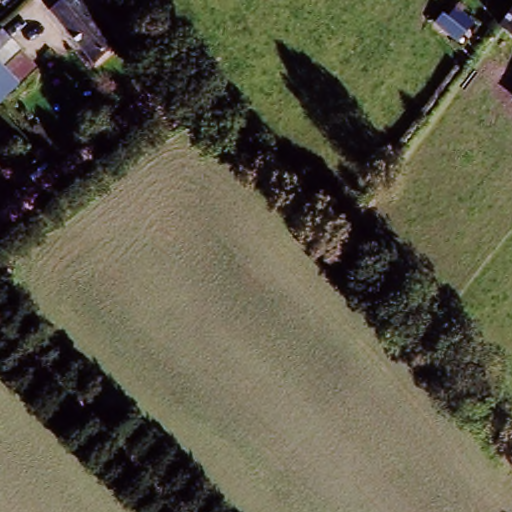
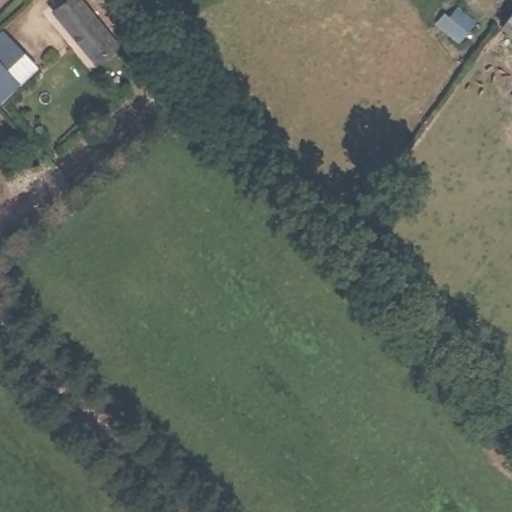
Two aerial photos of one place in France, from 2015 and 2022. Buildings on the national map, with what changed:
unchanged [(96,66),(81,48),(50,11),(64,0),(74,0),(101,31),(116,50),(96,66)]
unchanged [(512,10),(512,38),(499,28),(512,10)]
unchanged [(0,37),(3,35),(33,71),(13,88),(0,74),(0,37)]
unchanged [(0,99),(0,74),(13,88),(0,99)]

